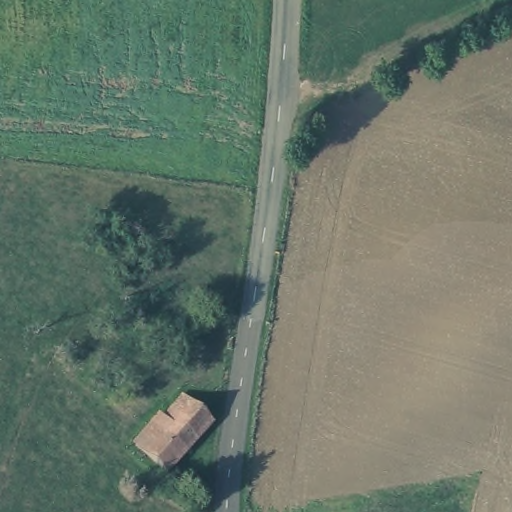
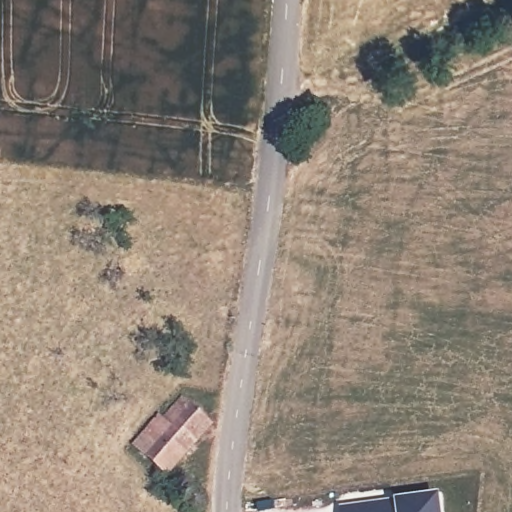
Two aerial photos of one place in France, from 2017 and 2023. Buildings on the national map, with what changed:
unchanged [(210,425),(166,477),(135,450),(182,400),(210,425)]
new [(387,504),(394,503),(394,500),(437,495),(439,512),(338,512),(337,506),(387,501),(387,504)]

